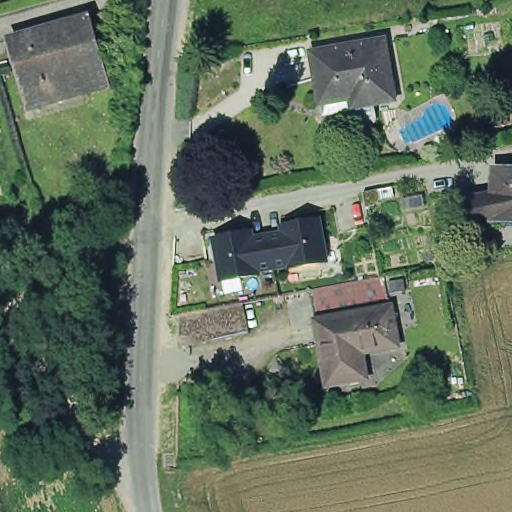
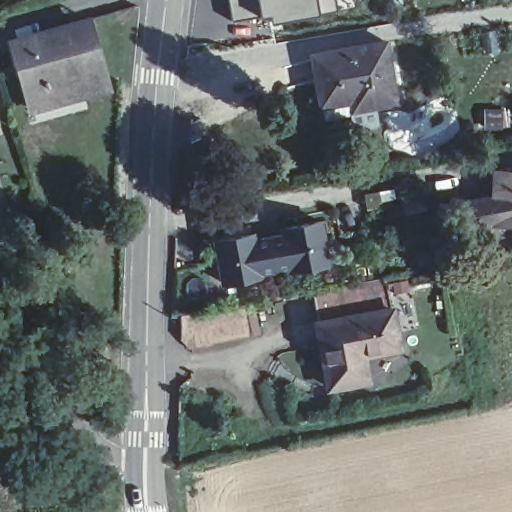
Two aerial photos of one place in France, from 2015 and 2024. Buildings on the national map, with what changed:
new [(270,22),(268,11),(229,19),(226,0),(333,0),(335,12),(270,22)]
unchanged [(32,99),(12,31),(89,9),(108,77),(32,99)]
unchanged [(357,109),(356,100),(327,106),(319,54),(390,41),(401,102),(357,109)]
unchanged [(495,221),(497,171),(512,172),(512,222),(495,221)]
unchanged [(328,219),(334,266),(225,286),(219,242),(328,219)]
unchanged [(315,319),(310,288),(380,275),(387,274),(392,307),(315,319)]
unchanged [(254,330),(192,341),(182,334),(177,311),(205,306),(247,298),(254,330)]
unchanged [(399,345),(363,352),(367,377),(328,385),(315,319),(392,307),(399,345)]

